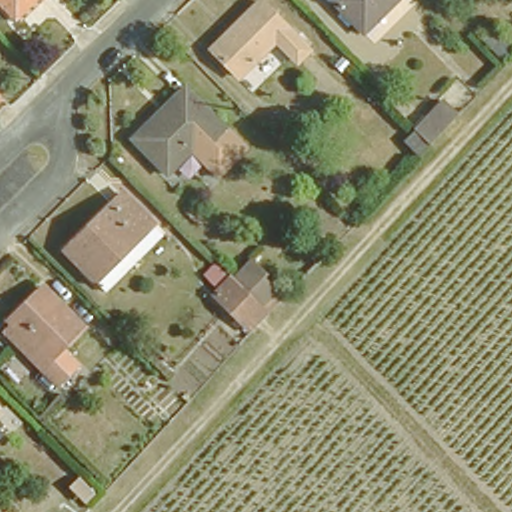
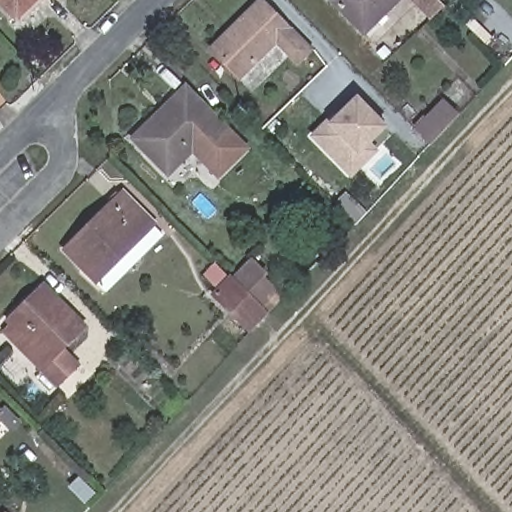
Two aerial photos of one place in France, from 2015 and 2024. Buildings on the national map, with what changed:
unchanged [(0,0),(29,0),(15,14),(0,0)]
unchanged [(295,54),(274,33),(239,68),(212,41),(255,0),(265,0),(307,42),(295,54)]
unchanged [(335,0),(390,0),(362,27),(335,0)]
unchanged [(180,73),(224,116),(190,151),(167,175),(124,135),(180,73)]
unchanged [(453,112),(425,141),(410,125),(437,98),(453,112)]
new [(332,126),(358,101),(385,129),(343,169),(313,139),(330,124),(332,126)]
new [(341,113),(343,116),(332,126),(330,124),(341,113)]
unchanged [(224,116),(255,146),(219,180),(190,151),(224,116)]
unchanged [(423,144),(414,153),(398,138),(408,128),(423,144)]
new [(376,153),(351,177),(343,169),(368,145),(376,153)]
unchanged [(154,223),(97,277),(67,246),(124,192),(154,223)]
unchanged [(247,326),(214,293),(232,275),(233,277),(251,259),(265,273),(262,277),(273,288),(259,303),(264,308),(247,326)]
unchanged [(5,327),(12,320),(10,316),(26,301),(45,283),(50,288),(85,324),(63,345),(79,363),(59,382),(42,364),(14,336),(5,327)]
unchanged [(7,512),(5,512),(6,511),(7,512)]

